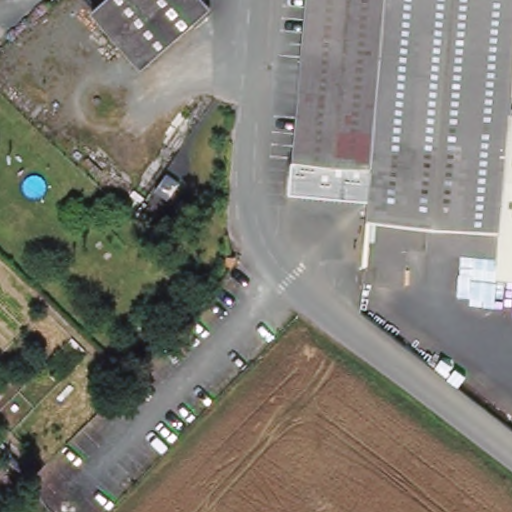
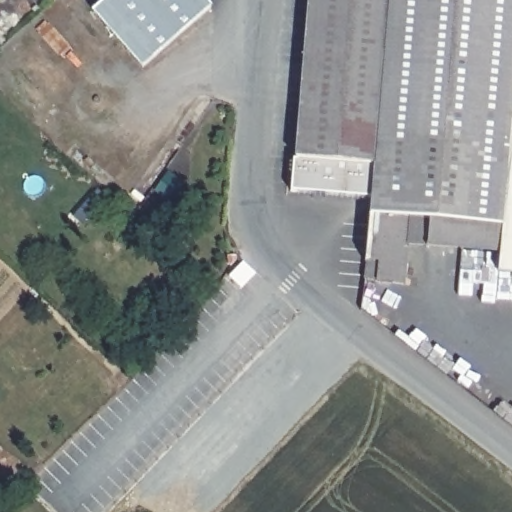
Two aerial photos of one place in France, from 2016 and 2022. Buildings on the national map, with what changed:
unchanged [(141,70),(90,14),(105,0),(197,0),(207,11),(141,70)]
unchanged [(496,258),(422,249),(409,249),(403,288),(373,284),(374,263),(364,263),(370,218),(371,199),(291,192),(305,0),(512,0),(512,281),(493,279),(496,258)]

